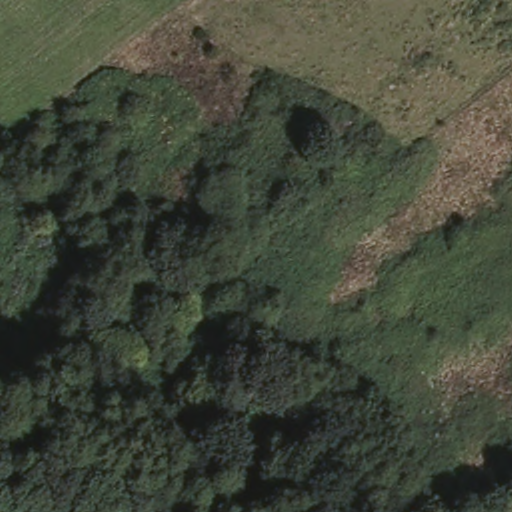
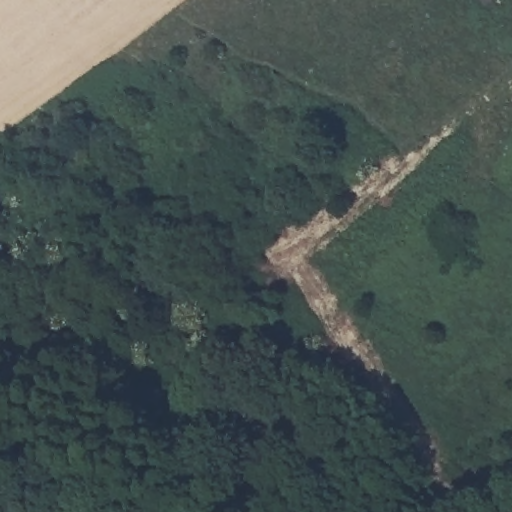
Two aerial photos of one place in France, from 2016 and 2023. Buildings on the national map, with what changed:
[]

